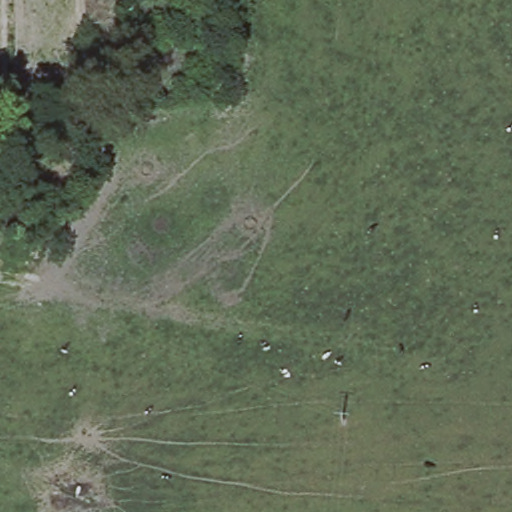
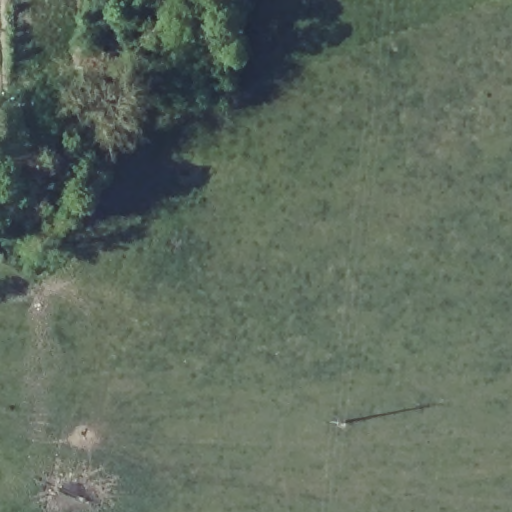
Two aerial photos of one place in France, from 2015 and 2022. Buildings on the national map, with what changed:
unchanged [(102,48),(103,97),(87,98),(86,48),(102,48)]
unchanged [(139,75),(139,91),(128,92),(127,75),(139,75)]

